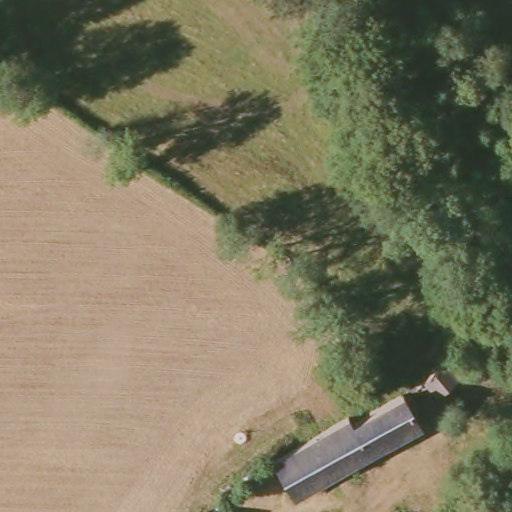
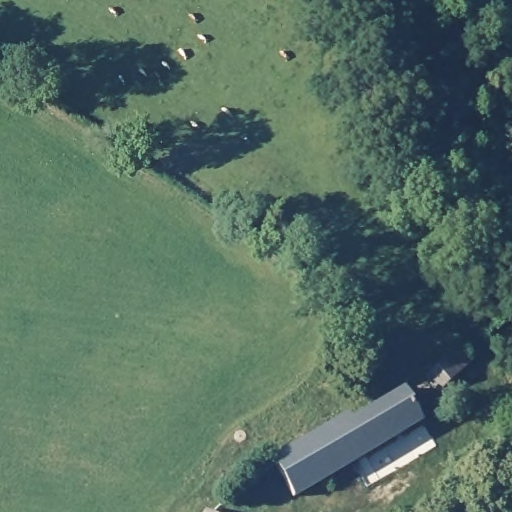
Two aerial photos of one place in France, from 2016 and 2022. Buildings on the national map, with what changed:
unchanged [(467,368),(469,369),(437,399),(424,384),(455,355),(467,368)]
unchanged [(415,420),(419,425),(294,498),(272,463),(312,439),(346,420),(350,424),(382,407),(401,396),(415,420)]

